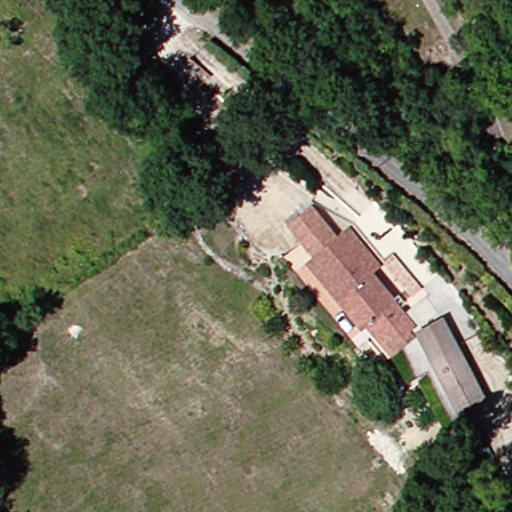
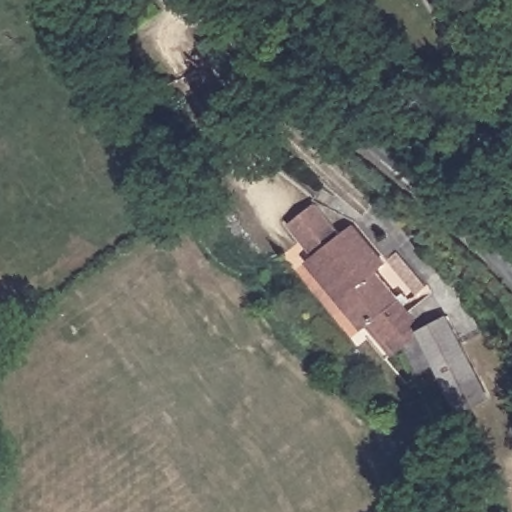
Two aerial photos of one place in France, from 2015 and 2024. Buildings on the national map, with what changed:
unchanged [(291,225),(315,205),(340,235),(351,227),(380,264),(372,271),(395,300),(373,318),(364,325),(340,294),(311,259),(316,255),(291,225)]
unchanged [(395,300),(416,324),(411,329),(415,333),(396,348),(373,318),(395,300)]
unchanged [(443,318),(485,398),(463,409),(452,387),(449,388),(437,366),(436,366),(418,330),(443,318)]

